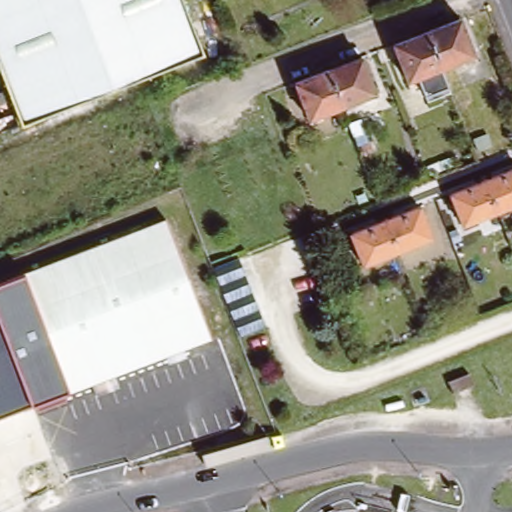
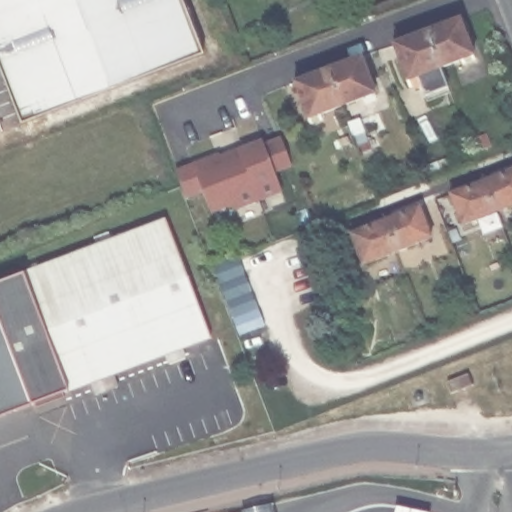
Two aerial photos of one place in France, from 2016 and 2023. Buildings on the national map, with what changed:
unchanged [(0,74),(0,0),(182,0),(203,56),(23,126),(1,74),(0,74)]
unchanged [(430,32),(460,20),(474,56),(443,67),(430,32)]
unchanged [(443,67),(451,89),(426,99),(418,77),(407,82),(393,46),(430,32),(443,67)]
unchanged [(329,72),(361,59),(375,95),(343,107),(329,72)]
unchanged [(343,107),(311,121),(296,85),(329,72),(343,107)]
new [(220,156),(221,159),(263,142),(265,146),(282,140),(293,167),(276,174),(283,192),(238,211),(236,206),(213,215),(205,194),(187,201),(176,174),(220,156)]
unchanged [(451,196),(512,171),(512,205),(462,225),(451,196)]
unchanged [(431,237),(362,264),(350,235),(419,207),(431,237)]
unchanged [(165,219),(210,338),(67,390),(0,416),(0,283),(23,274),(165,219)]
unchanged [(270,328),(244,338),(240,327),(218,273),(244,263),(270,328)]
unchanged [(473,383),(452,392),(448,381),(468,372),(473,383)]
new [(273,507),(274,512),(250,512),(273,507)]
new [(397,507),(419,512),(396,512),(397,507)]

